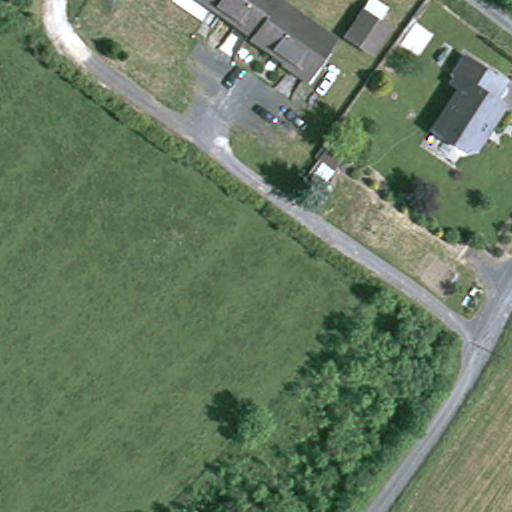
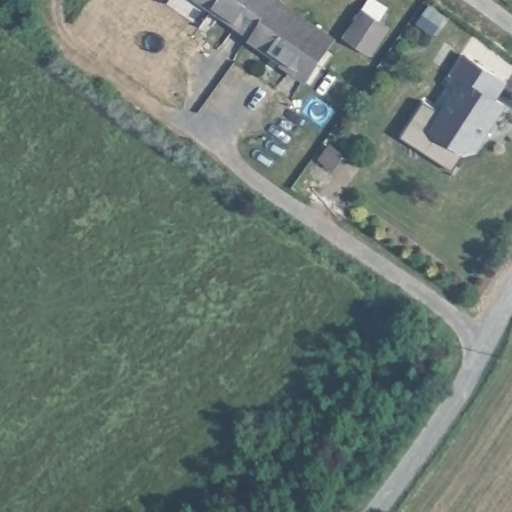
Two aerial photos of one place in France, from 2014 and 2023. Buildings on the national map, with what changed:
unchanged [(253,36),(202,0),(279,0),(278,3),(253,36)]
unchanged [(278,3),(333,41),(308,79),(252,39),(253,36),(278,3)]
unchanged [(364,13),(388,29),(372,54),(347,38),(364,13)]
unchanged [(469,54),(509,80),(497,97),(506,103),(476,148),(469,150),(437,129),(464,88),(454,81),(460,74),(457,71),(469,54)]

